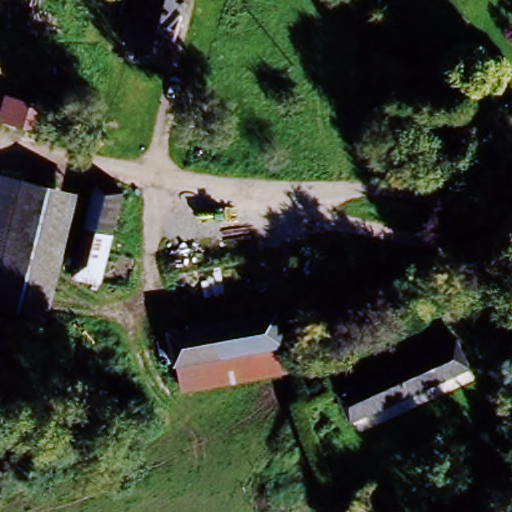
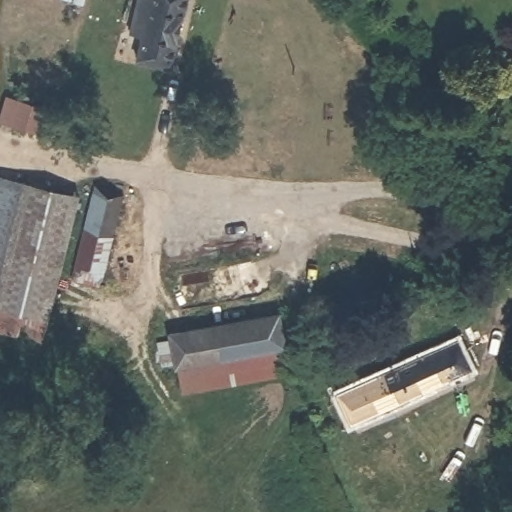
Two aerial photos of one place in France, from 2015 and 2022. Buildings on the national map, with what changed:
unchanged [(169,69),(141,61),(148,35),(134,31),(143,0),(187,0),(169,69)]
unchanged [(48,116),(36,137),(0,118),(0,117),(10,97),(48,116)]
unchanged [(4,175),(61,185),(76,189),(39,335),(17,329),(0,324),(0,190),(4,175)]
unchanged [(95,286),(66,279),(90,187),(119,194),(95,286)]
unchanged [(161,338),(177,335),(175,330),(280,310),(286,345),(183,366),(181,360),(166,363),(161,338)]
unchanged [(472,366),(353,418),(340,391),(460,339),(472,366)]
unchanged [(286,345),(291,368),(188,389),(183,366),(286,345)]

